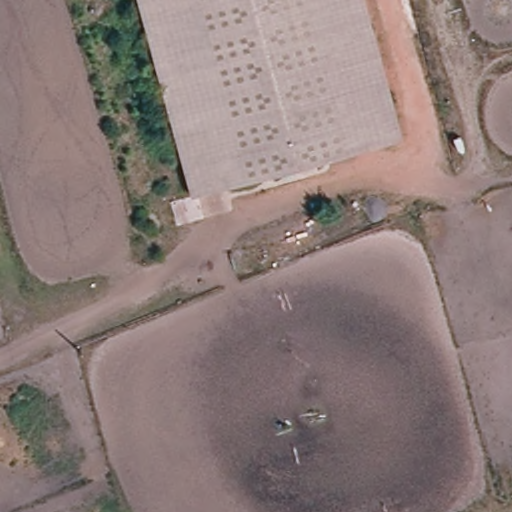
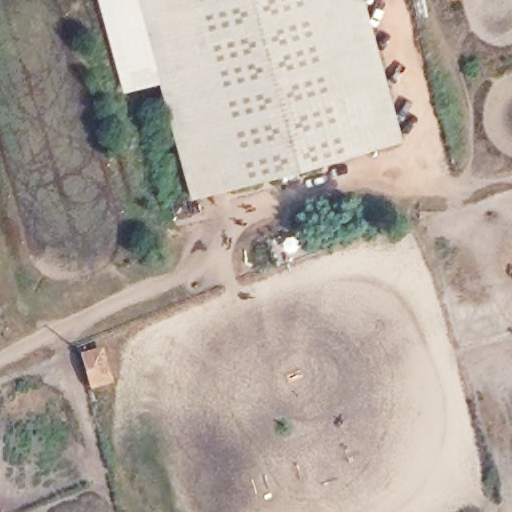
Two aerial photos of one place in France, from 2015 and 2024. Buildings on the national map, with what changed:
new [(160,83),(121,93),(97,0),(137,0),(160,83)]
unchanged [(403,142),(191,198),(137,0),(366,0),(403,142)]

